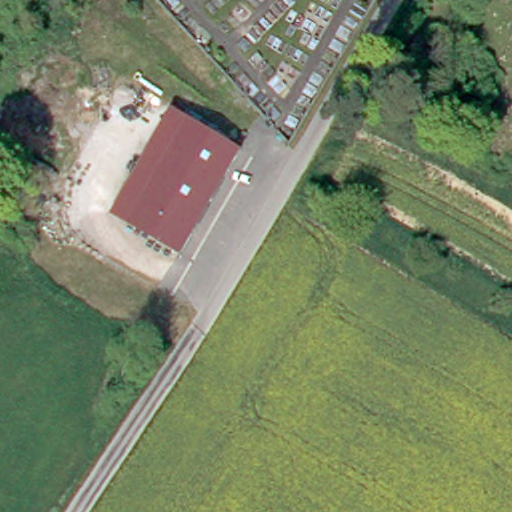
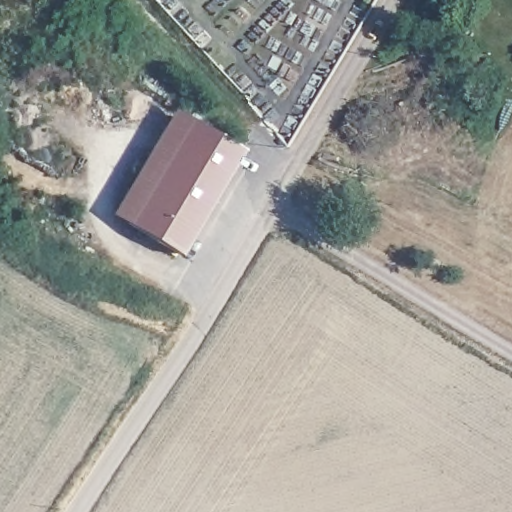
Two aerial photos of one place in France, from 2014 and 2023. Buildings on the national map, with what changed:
unchanged [(171,110),(243,153),(182,254),(112,214),(171,110)]

